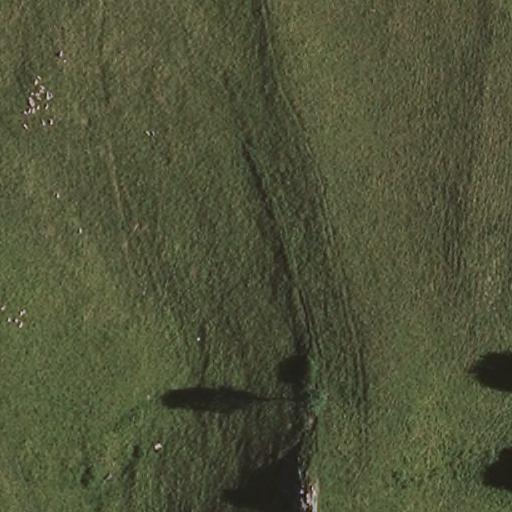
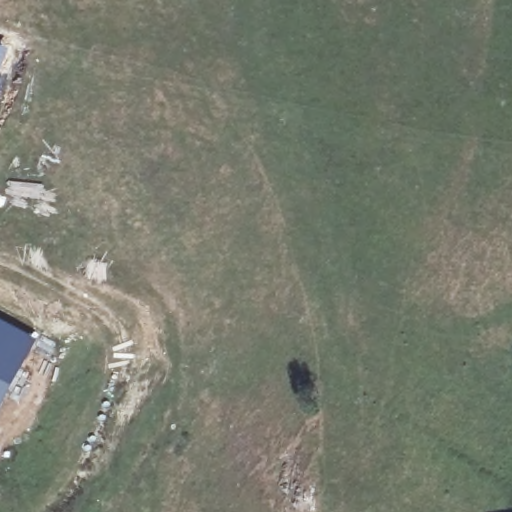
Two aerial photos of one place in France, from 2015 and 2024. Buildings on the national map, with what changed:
new [(18,47),(0,91),(0,40),(18,47)]
new [(36,342),(0,414),(0,323),(36,342)]

